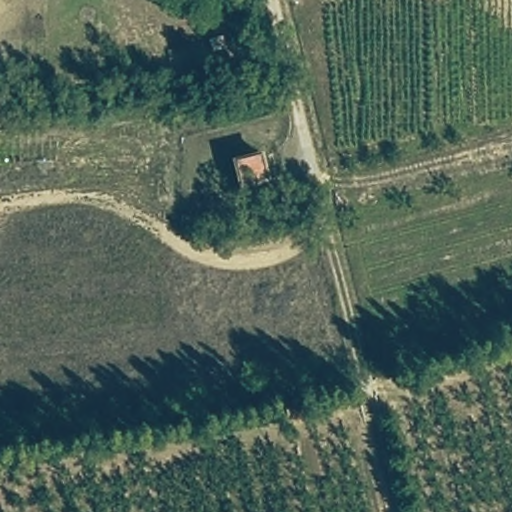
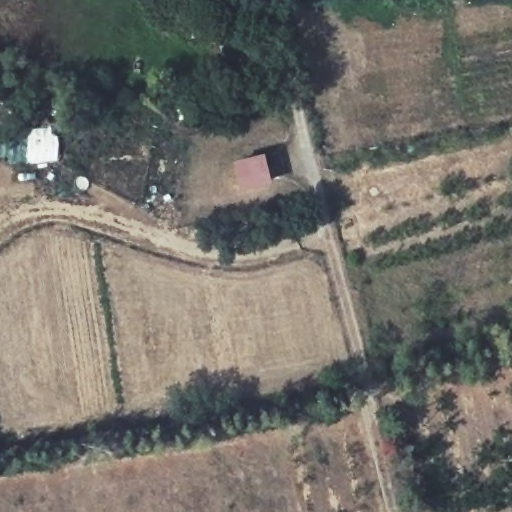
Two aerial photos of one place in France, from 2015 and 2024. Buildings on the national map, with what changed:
unchanged [(225,40),(236,82),(222,87),(209,45),(225,40)]

